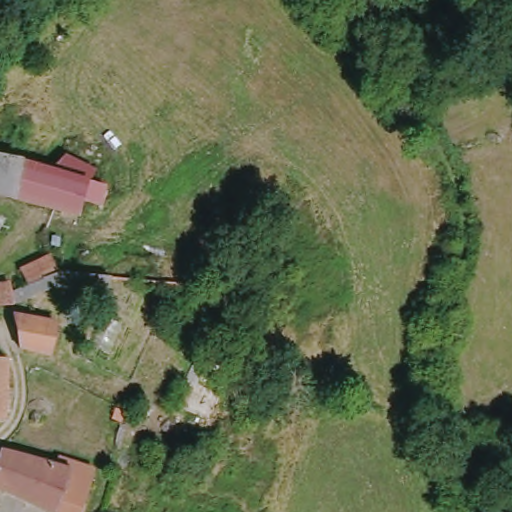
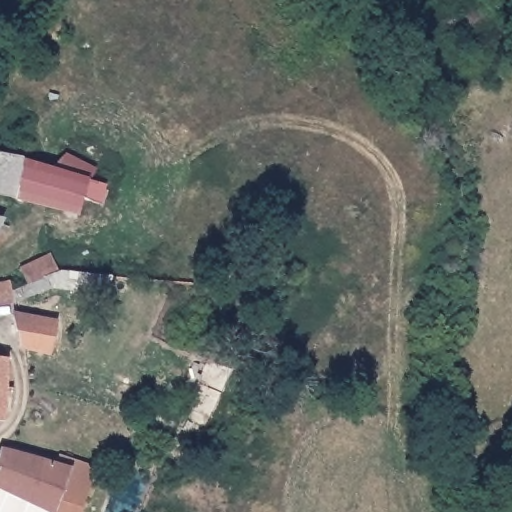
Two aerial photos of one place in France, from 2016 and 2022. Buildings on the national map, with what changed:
unchanged [(29,159),(95,177),(112,182),(105,208),(88,203),(83,222),(0,198),(0,152),(29,159)]
unchanged [(11,226),(0,242),(0,223),(11,226)]
unchanged [(13,293),(27,288),(20,270),(50,254),(60,274),(107,276),(101,295),(57,291),(14,308),(0,308),(0,281),(10,279),(13,293)]
unchanged [(57,318),(51,354),(18,348),(13,310),(57,318)]
unchanged [(8,362),(12,425),(0,425),(0,361),(8,362)]
unchanged [(5,445),(76,473),(71,487),(63,512),(52,512),(3,487),(0,494),(0,453),(5,445)]

